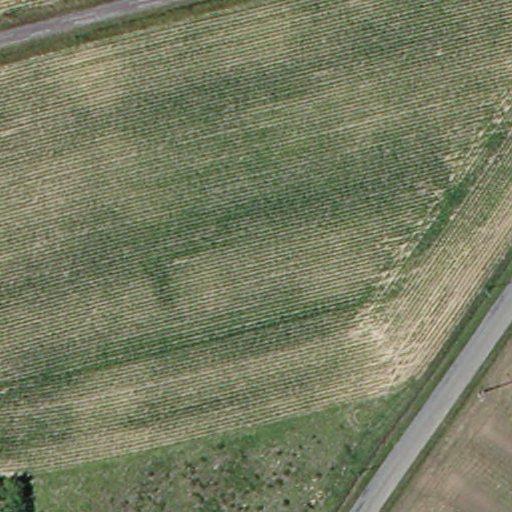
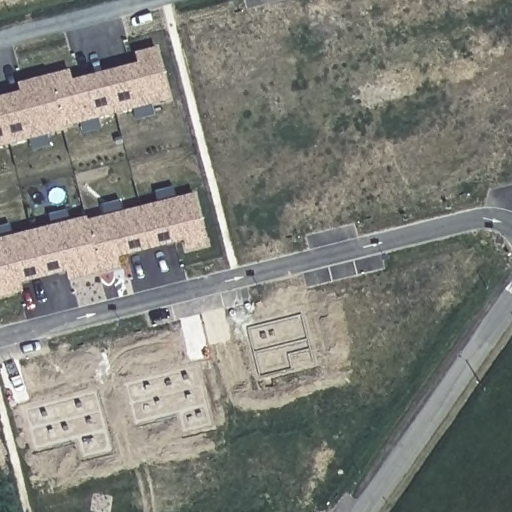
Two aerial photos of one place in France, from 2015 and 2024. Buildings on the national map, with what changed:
new [(19,83),(70,70),(73,78),(138,62),(136,52),(156,46),(170,100),(0,147),(0,95),(19,91),(19,83)]
new [(11,236),(87,216),(87,220),(104,215),(102,206),(119,201),(122,211),(193,193),(207,248),(185,253),(182,245),(115,260),(117,270),(69,282),(67,273),(14,287),(16,295),(0,299),(0,227),(9,225),(11,236)]

